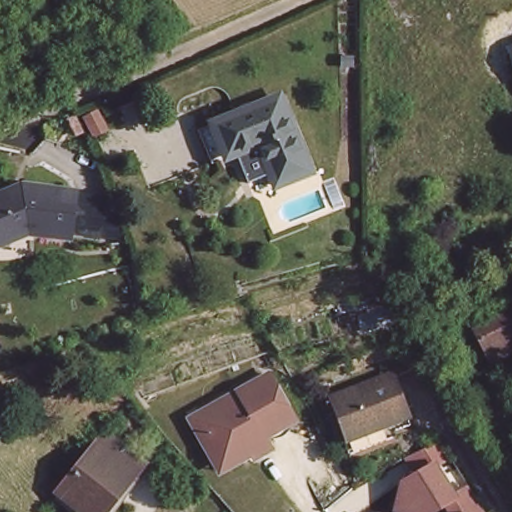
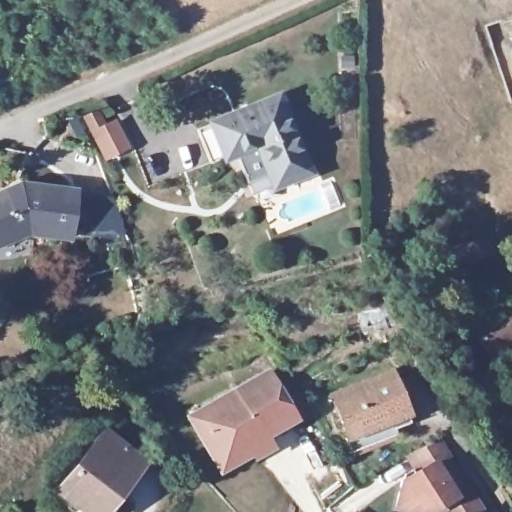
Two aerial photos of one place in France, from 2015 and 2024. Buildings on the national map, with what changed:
unchanged [(198,123),(216,116),(282,91),(311,162),(278,177),(261,140),(230,152),(213,159),(198,123)]
new [(83,117),(98,109),(105,123),(115,118),(131,149),(105,162),(83,117)]
unchanged [(65,232),(23,227),(0,235),(0,191),(19,184),(70,188),(65,232)]
unchanged [(481,247),(488,262),(461,274),(454,259),(481,247)]
unchanged [(494,359),(474,321),(512,300),(512,350),(494,359)]
unchanged [(410,416),(396,422),(399,431),(354,448),(329,390),(391,365),(410,416)]
unchanged [(266,372),(293,419),(264,436),(268,444),(222,470),(215,459),(212,461),(187,418),(266,372)]
unchanged [(141,463),(101,512),(87,512),(60,489),(106,433),(141,463)]
unchanged [(396,510),(402,476),(412,471),(403,457),(438,437),(452,461),(444,466),(454,486),(470,479),(490,512),(404,512),(396,510)]
unchanged [(356,510),(358,512),(354,512),(356,510)]

